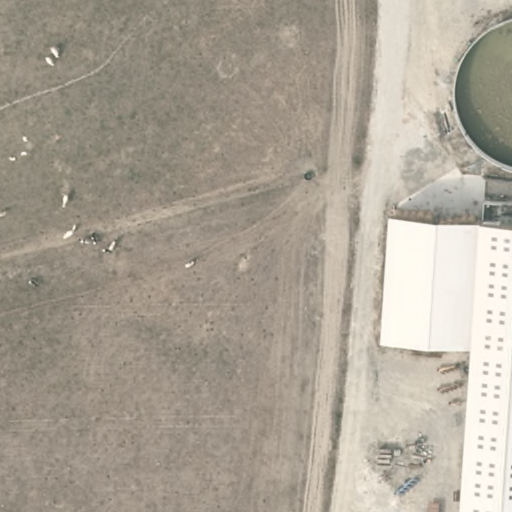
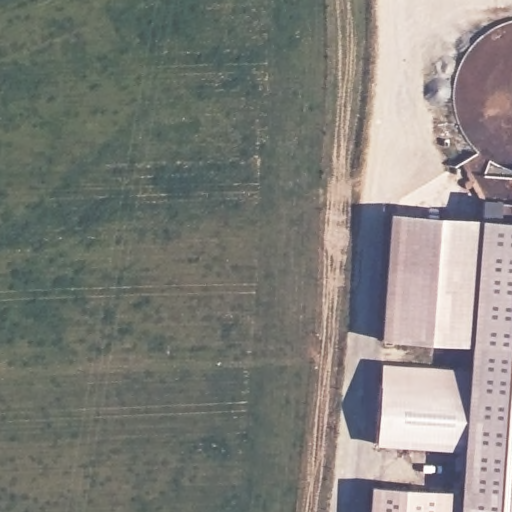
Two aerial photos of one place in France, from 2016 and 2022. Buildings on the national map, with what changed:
unchanged [(471,346),(380,342),(387,212),(512,220),(512,512),(461,512),(471,346)]
new [(380,364),(470,371),(465,451),(376,445),(380,364)]
new [(370,486),(450,491),(449,512),(369,512),(370,486)]

